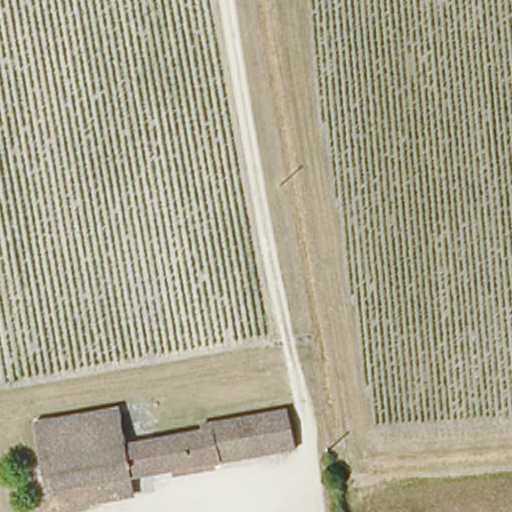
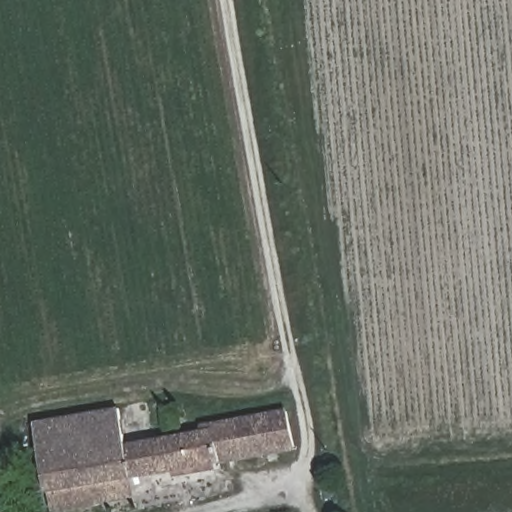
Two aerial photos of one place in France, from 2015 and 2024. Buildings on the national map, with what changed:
unchanged [(211,425),(287,410),(294,447),(217,460),(212,432),(211,425)]
unchanged [(217,460),(107,479),(50,489),(38,428),(126,411),(132,447),(212,432),(217,460)]
unchanged [(112,502),(60,512),(54,512),(50,489),(107,479),(112,502)]

